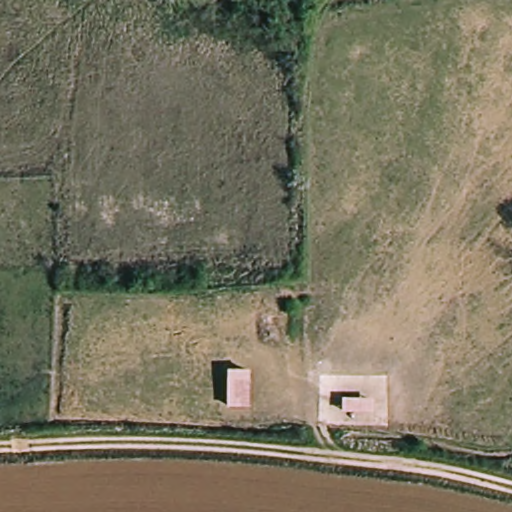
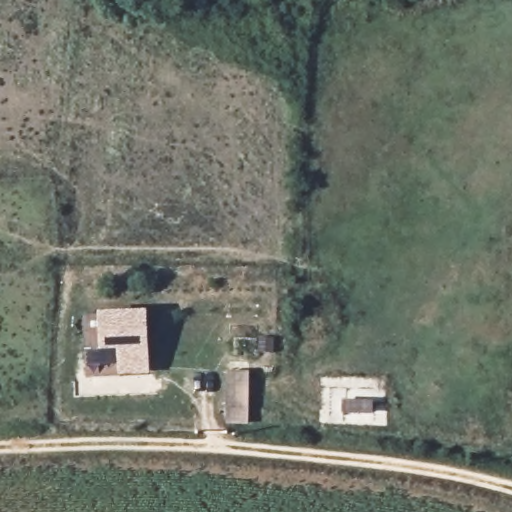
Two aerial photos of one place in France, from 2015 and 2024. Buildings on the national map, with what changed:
new [(86,350),(85,317),(100,316),(100,313),(148,310),(151,373),(120,374),(118,350),(101,350),(86,350)]
unchanged [(250,407),(228,407),(228,370),(250,371),(250,407)]

